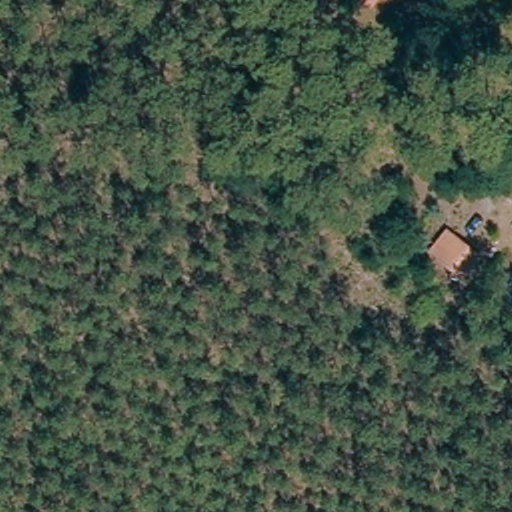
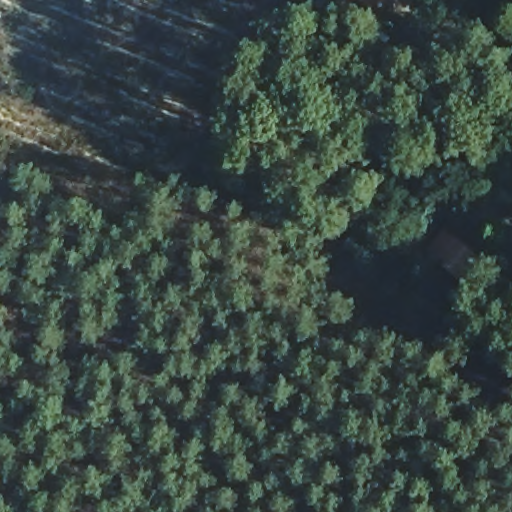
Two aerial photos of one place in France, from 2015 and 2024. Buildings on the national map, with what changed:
unchanged [(387,0),(395,0),(392,4),(387,0)]
unchanged [(447,236),(482,261),(469,282),(434,255),(447,236)]

